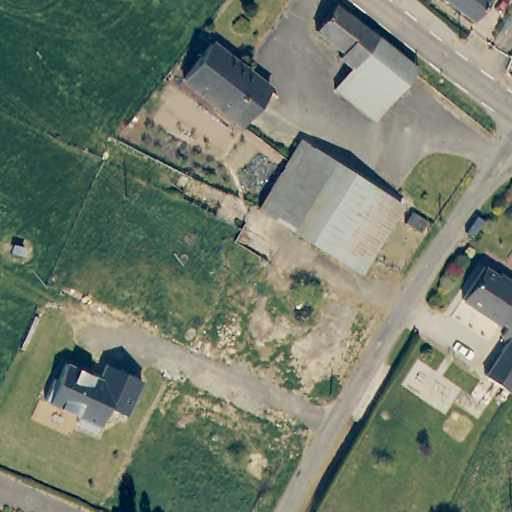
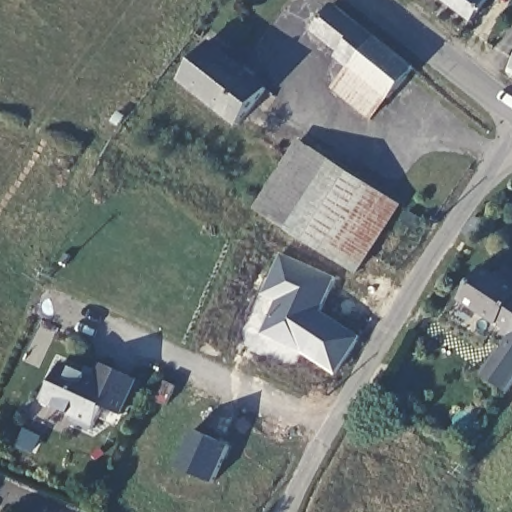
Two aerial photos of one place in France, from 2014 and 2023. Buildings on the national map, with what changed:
unchanged [(446,0),(482,0),(469,17),(446,0)]
unchanged [(390,101),(349,70),(336,61),(340,55),(313,32),(333,5),(375,40),(377,38),(415,69),(390,101)]
unchanged [(267,90),(242,125),(184,81),(209,45),(267,90)]
unchanged [(512,68),(512,72),(510,71),(512,68)]
unchanged [(373,121),(335,90),(349,70),(390,101),(373,121)]
unchanged [(293,229),(291,231),(278,222),(258,209),(301,140),(334,162),(293,229)]
unchanged [(402,206),(365,261),(358,272),(291,231),(293,229),(334,162),(402,206)]
unchanged [(425,220),(418,234),(404,225),(413,212),(425,220)]
new [(357,342),(336,375),(302,353),(261,335),(285,282),(271,276),(280,255),(335,280),(317,319),(336,330),(357,342)]
unchanged [(503,275),(505,273),(512,278),(512,323),(500,317),(499,319),(460,297),(480,262),(503,275)]
unchanged [(512,327),(512,384),(487,370),(512,327)]
unchanged [(109,408),(99,425),(47,405),(65,365),(98,377),(104,365),(140,378),(125,416),(109,408)]
new [(194,431),(230,447),(213,485),(177,469),(194,431)]

